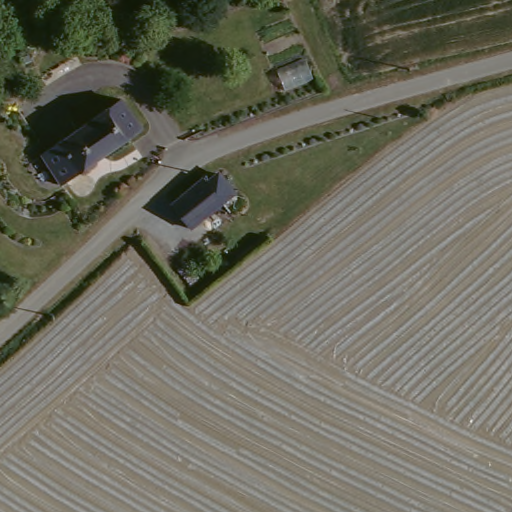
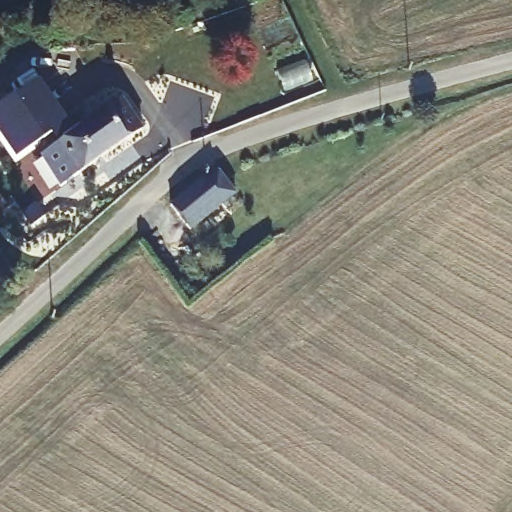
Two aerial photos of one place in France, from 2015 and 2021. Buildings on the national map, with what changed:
new [(56,141),(50,132),(16,156),(0,133),(0,104),(14,95),(16,98),(39,80),(72,130),(56,141)]
unchanged [(146,124),(97,159),(66,178),(45,149),(75,128),(124,93),(146,124)]
unchanged [(222,208),(189,234),(168,207),(171,206),(200,182),(201,181),(201,180),(222,208)]

